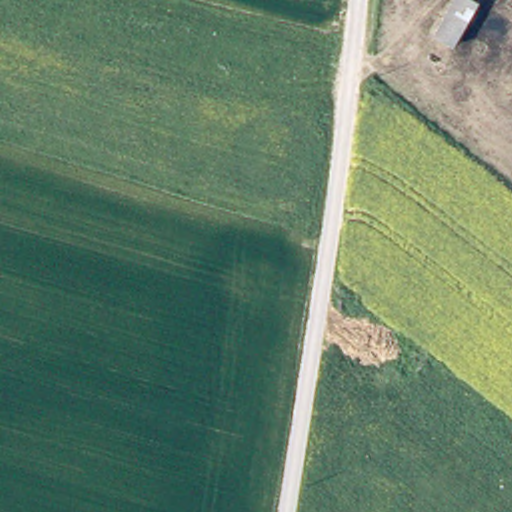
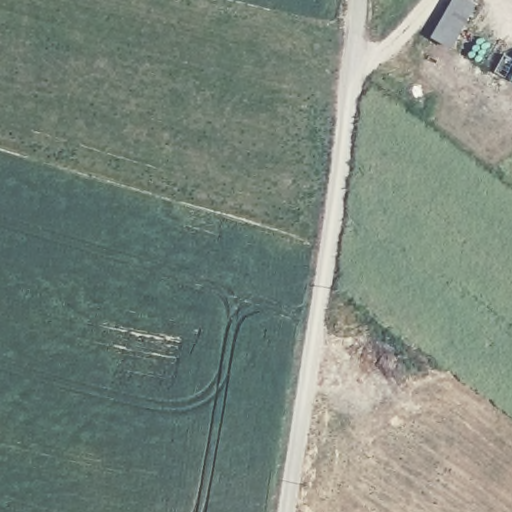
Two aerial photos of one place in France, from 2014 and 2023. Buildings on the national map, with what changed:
unchanged [(464,0),(486,0),(469,43),(449,35),(464,0)]

